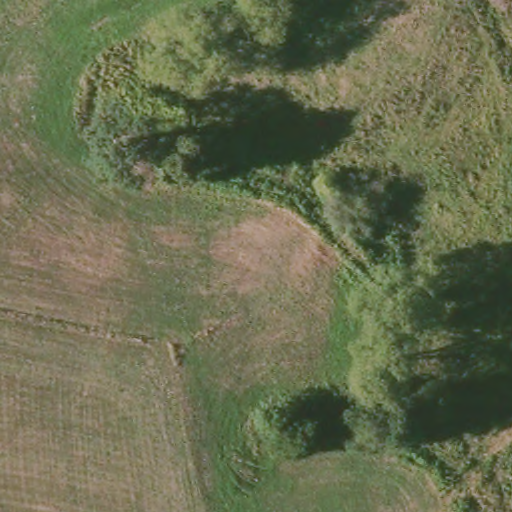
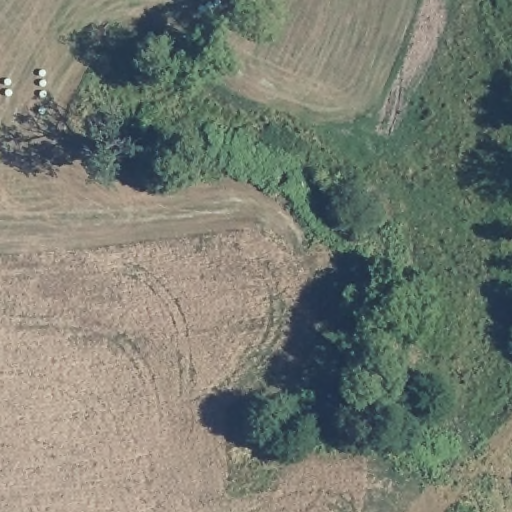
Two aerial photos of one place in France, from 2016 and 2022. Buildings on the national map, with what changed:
[]

